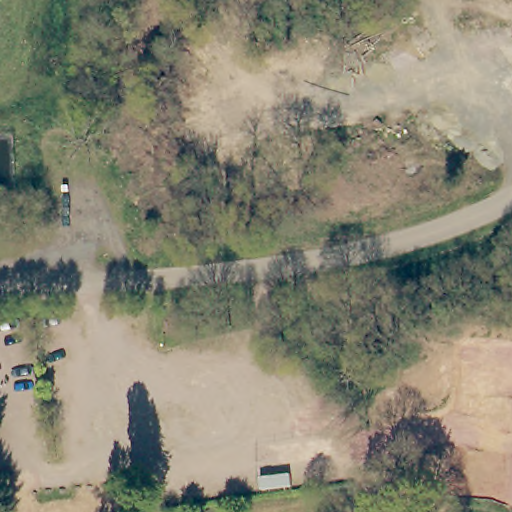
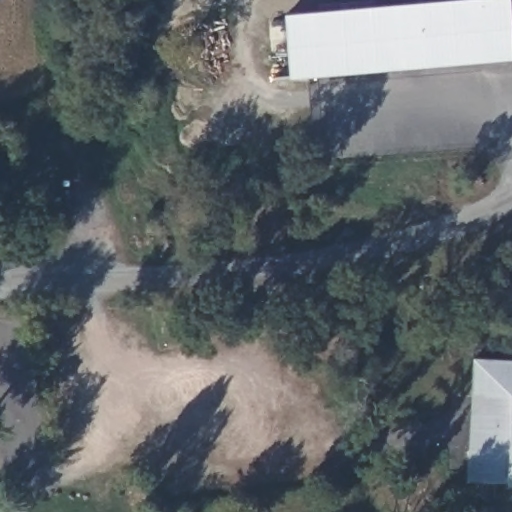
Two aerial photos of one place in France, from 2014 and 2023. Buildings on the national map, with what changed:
new [(283,19),(495,0),(507,0),(512,56),(512,62),(289,82),(283,19)]
new [(507,483),(465,481),(471,361),(512,362),(512,489),(506,489),(507,483)]

